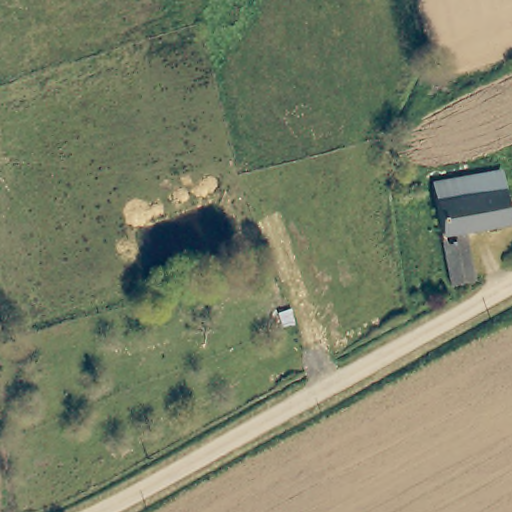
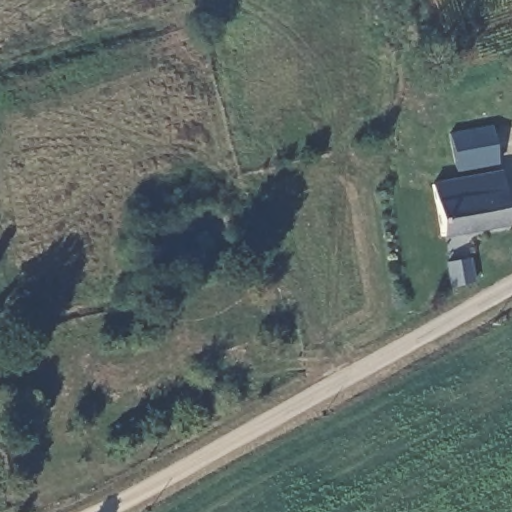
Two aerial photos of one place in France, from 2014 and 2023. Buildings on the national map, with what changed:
new [(457,179),(450,134),(491,125),(498,172),(457,179)]
unchanged [(437,204),(433,184),(511,169),(512,177),(512,221),(487,227),(480,196),(437,204)]
unchanged [(437,204),(480,196),(487,227),(468,231),(442,235),(437,204)]
demolished [(450,295),(448,278),(477,274),(480,287),(450,295)]

